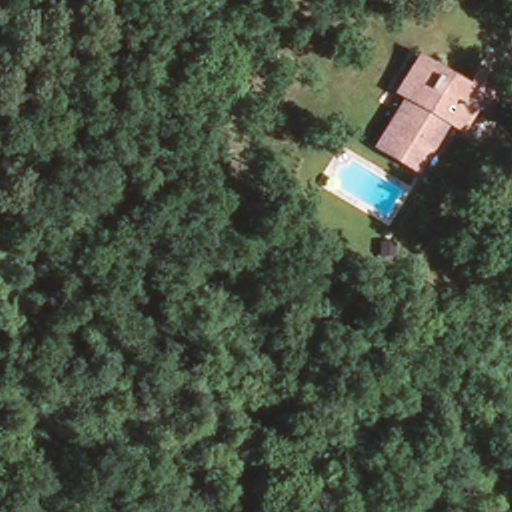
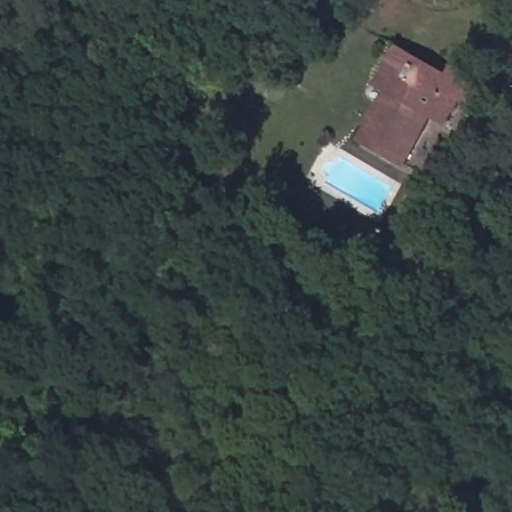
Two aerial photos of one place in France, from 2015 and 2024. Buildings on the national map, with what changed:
unchanged [(365,142),(390,96),(380,91),(400,47),(452,80),(462,63),(496,81),(480,114),(468,106),(453,132),(438,122),(410,174),(365,142)]

